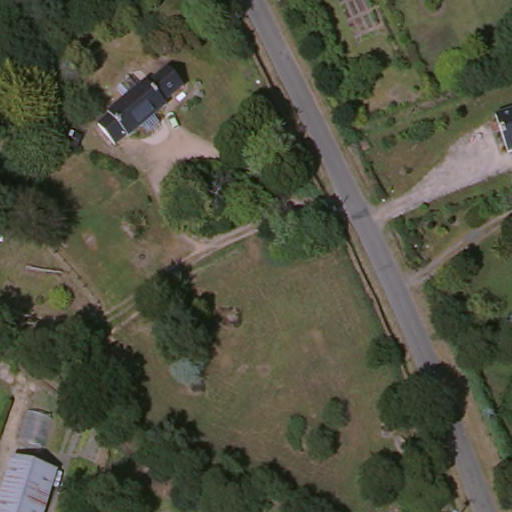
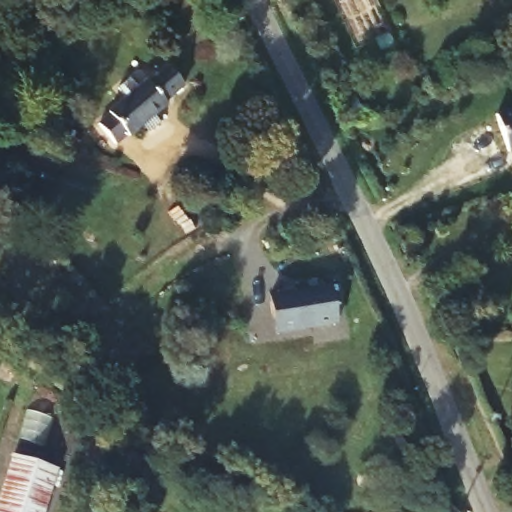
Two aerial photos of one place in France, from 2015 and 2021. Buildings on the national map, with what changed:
unchanged [(132,96),(125,85),(135,76),(144,86),(154,76),(159,79),(175,65),(190,87),(173,100),(178,108),(123,150),(101,120),(132,96)]
unchanged [(496,115),(512,109),(512,153),(511,153),(496,115)]
new [(326,285),(333,322),(274,333),(267,296),(326,285)]
unchanged [(44,512),(0,512),(0,507),(16,455),(59,468),(44,512)]

